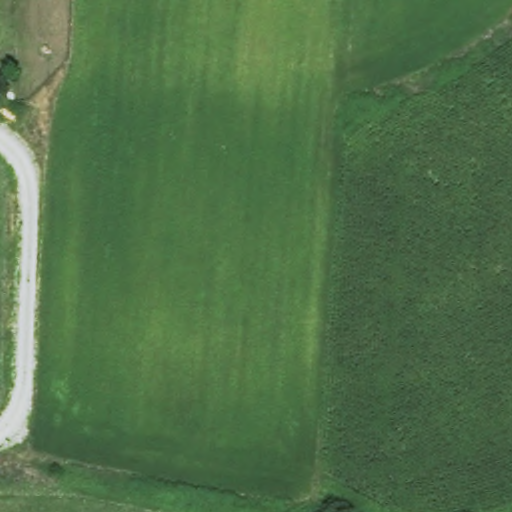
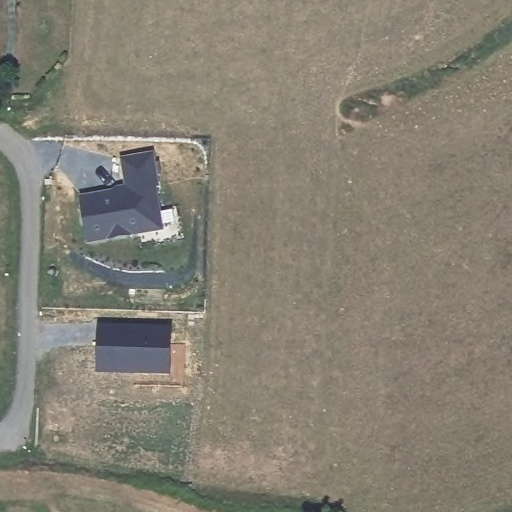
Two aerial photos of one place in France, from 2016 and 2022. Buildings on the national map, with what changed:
new [(83,198),(128,189),(122,158),(151,154),(159,208),(177,205),(184,242),(141,250),(138,233),(90,241),(83,198)]
new [(98,324),(136,325),(136,329),(146,329),(146,326),(170,326),(169,363),(161,371),(97,369),(98,324)]

